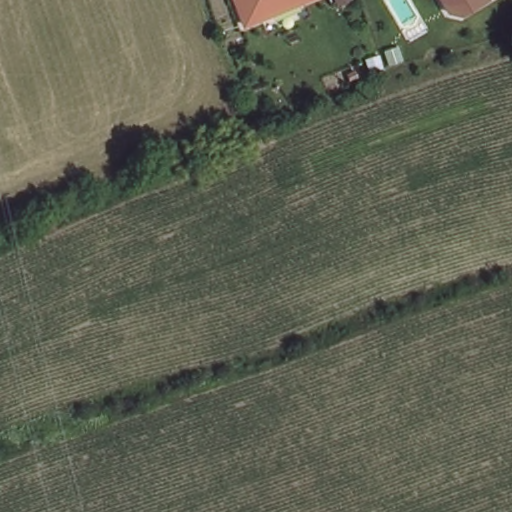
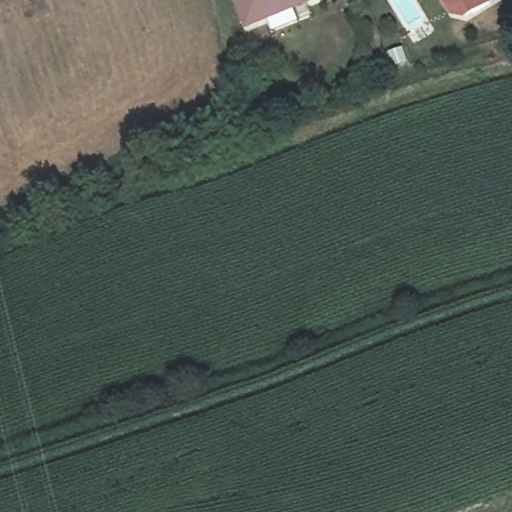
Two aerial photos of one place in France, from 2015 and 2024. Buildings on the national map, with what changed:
unchanged [(233,0),(294,0),(241,21),(233,0)]
unchanged [(453,5),(450,0),(480,0),(466,8),(453,5)]

